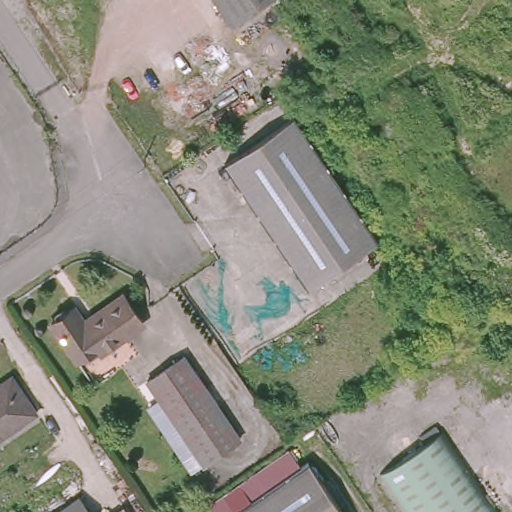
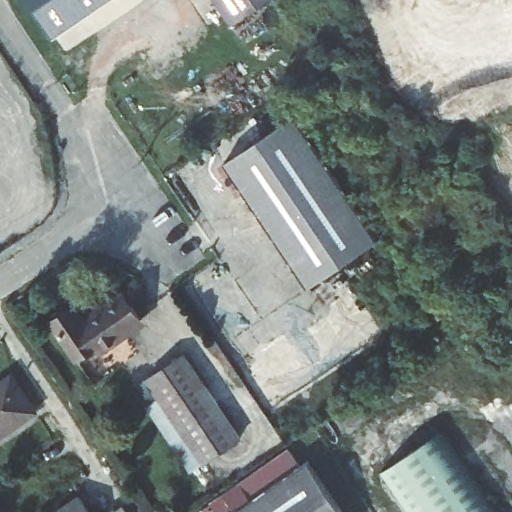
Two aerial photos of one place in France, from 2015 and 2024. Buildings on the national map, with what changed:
new [(31,0),(106,0),(55,35),(31,0)]
unchanged [(268,0),(230,25),(214,0),(268,0)]
unchanged [(293,116),(377,244),(309,290),(226,164),(293,116)]
unchanged [(119,333),(124,340),(99,356),(92,346),(72,361),(46,323),(68,308),(78,322),(122,294),(140,319),(119,333)]
unchanged [(182,354),(241,440),(205,464),(146,379),(175,360),(182,354)]
unchanged [(8,377),(31,414),(0,434),(0,382),(8,377)]
unchanged [(500,512),(403,512),(376,475),(440,431),(500,512)]
unchanged [(307,464),(341,512),(236,512),(307,464)]
unchanged [(78,494),(91,512),(54,512),(78,494)]
unchanged [(125,503),(131,512),(107,512),(125,503)]

